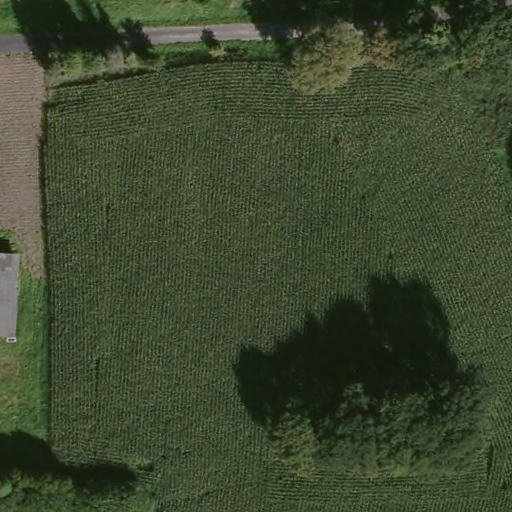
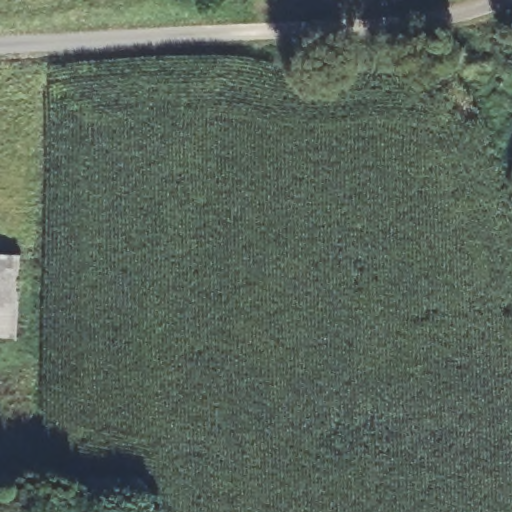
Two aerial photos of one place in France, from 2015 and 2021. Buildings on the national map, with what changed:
unchanged [(18,263),(16,295),(14,343),(0,342),(0,262),(18,263)]

